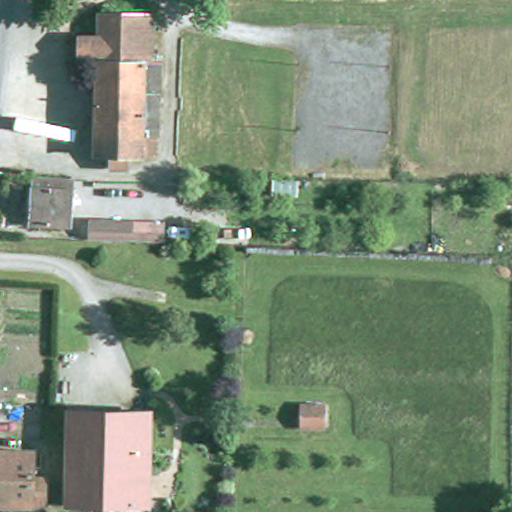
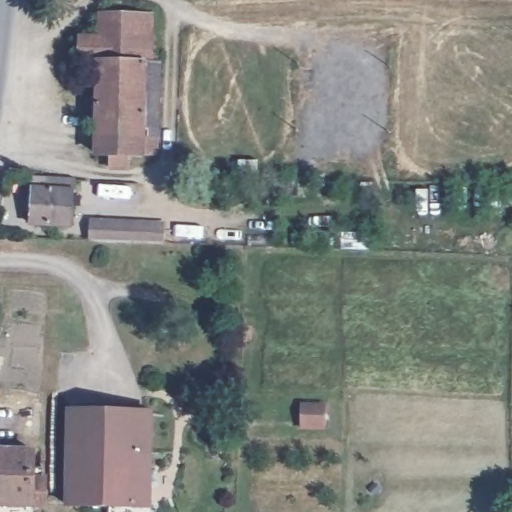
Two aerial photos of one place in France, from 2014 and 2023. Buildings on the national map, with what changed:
unchanged [(74,77),(73,54),(91,54),(91,26),(143,26),(142,64),(149,65),(148,72),(151,72),(149,150),(133,150),(133,170),(120,170),(120,177),(105,176),(105,170),(88,170),(90,77),(74,77)]
unchanged [(22,210),(30,210),(30,181),(57,182),(72,182),(72,229),(55,229),(30,229),(30,216),(21,216),(22,210)]
unchanged [(90,236),(174,239),(173,254),(90,252),(90,236)]
unchanged [(63,407),(146,408),(145,503),(62,502),(62,474),(63,407)]
unchanged [(306,413),(330,415),(330,435),(306,435),(306,413)]
unchanged [(0,500),(0,448),(26,448),(26,473),(26,500),(0,500)]
unchanged [(26,473),(40,473),(62,474),(62,502),(62,512),(26,512),(26,500),(26,473)]

